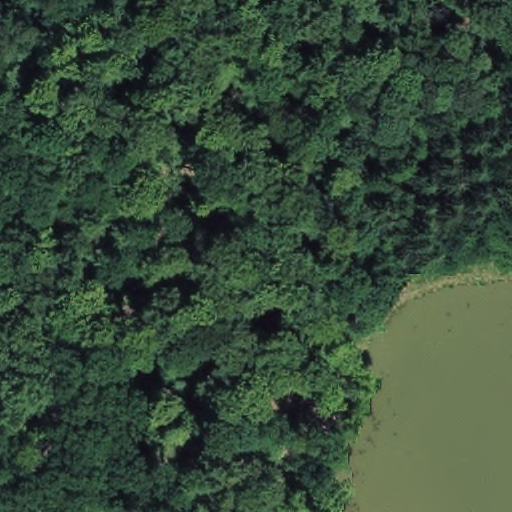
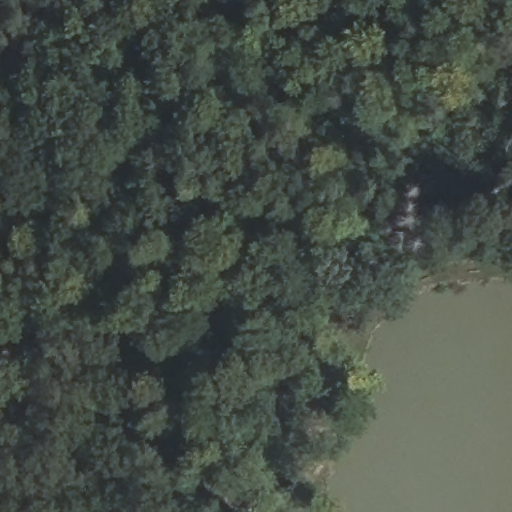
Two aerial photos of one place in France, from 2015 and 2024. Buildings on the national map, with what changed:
unchanged [(300,401),(299,370),(297,340),(315,340),(317,370),(319,401),(300,401)]

